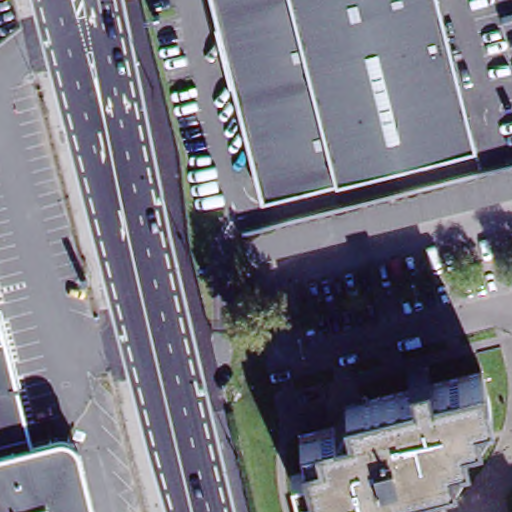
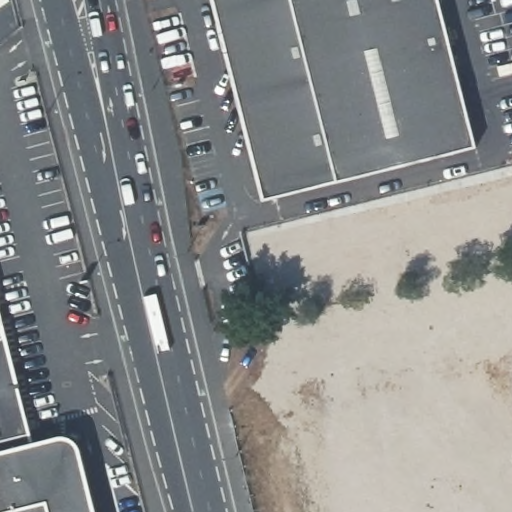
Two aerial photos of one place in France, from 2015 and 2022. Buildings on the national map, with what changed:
unchanged [(475,147),(417,162),(394,168),(392,158),(336,172),(339,182),(273,199),(265,169),(256,172),(213,0),(437,0),(475,147)]
unchanged [(433,185),(512,165),(512,197),(453,212),(249,262),(242,233),(433,185)]
unchanged [(0,511),(0,303),(35,442),(60,435),(61,435),(62,435),(63,435),(64,435),(65,435),(66,435),(66,436),(67,436),(68,436),(69,436),(69,437),(70,437),(71,437),(71,438),(72,438),(73,439),(74,440),(75,440),(75,441),(76,441),(76,442),(76,443),(77,443),(77,444),(78,444),(78,445),(79,446),(79,447),(79,448),(79,449),(80,449),(80,450),(80,451),(95,512),(48,512),(45,500),(0,511)]
demolished [(313,471),(304,437),(354,424),(350,407),(418,390),(414,373),(432,368),(436,385),(488,372),(497,409),(481,413),(485,430),(467,435),(471,453),(454,457),(458,474),(407,487),(411,505),(395,508),(396,512),(324,512),(318,488),(301,492),(297,475),(313,471)]
unchanged [(48,512),(0,512),(0,511),(45,500),(48,512)]

